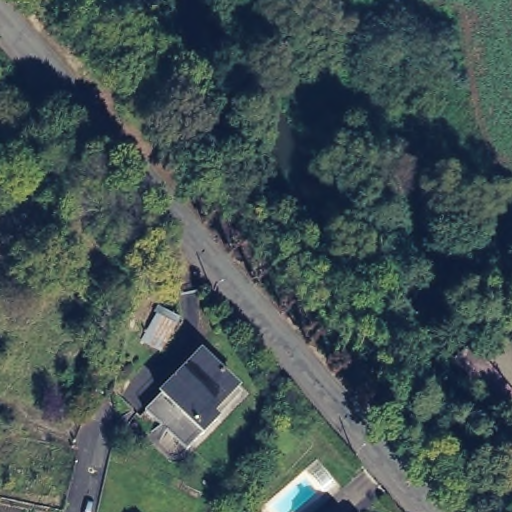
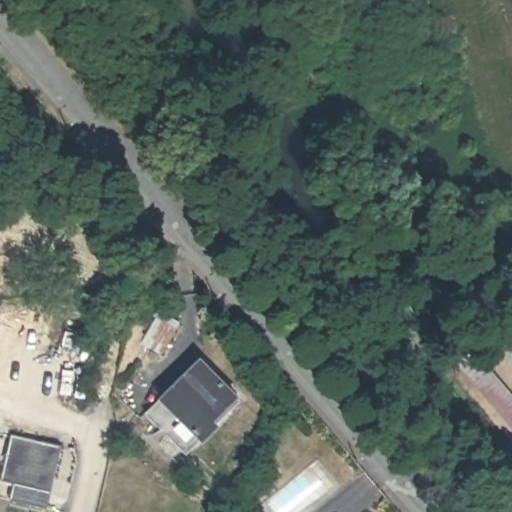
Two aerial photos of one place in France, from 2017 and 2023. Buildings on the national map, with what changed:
unchanged [(485,393),(420,315),(434,302),(512,394),(512,433),(481,397),(485,393)]
unchanged [(198,359),(234,395),(210,420),(213,425),(184,454),(143,413),(198,359)]
new [(13,436),(63,447),(56,480),(53,479),(47,509),(12,501),(15,484),(2,481),(13,436)]

